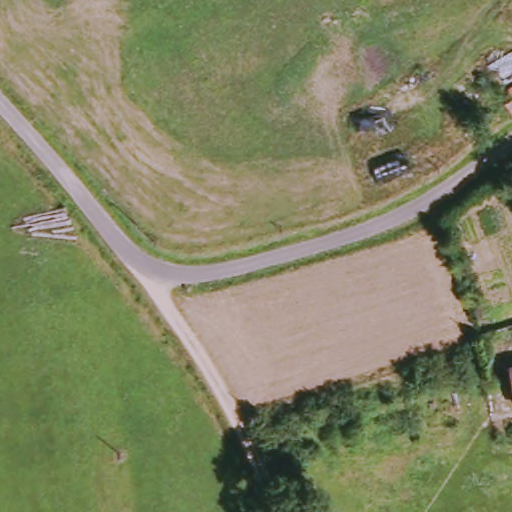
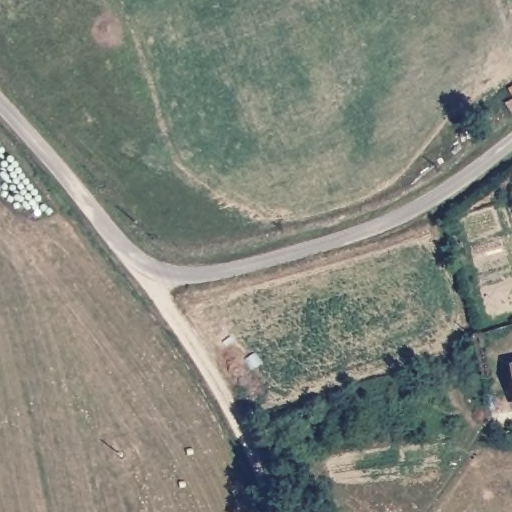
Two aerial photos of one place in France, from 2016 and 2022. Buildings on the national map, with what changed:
unchanged [(509,69),(512,67),(512,81),(509,69)]

